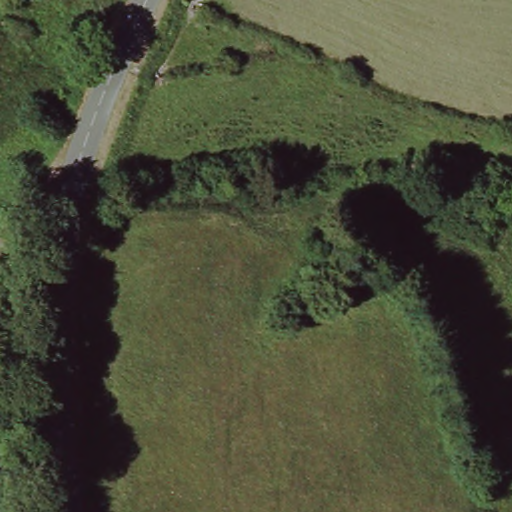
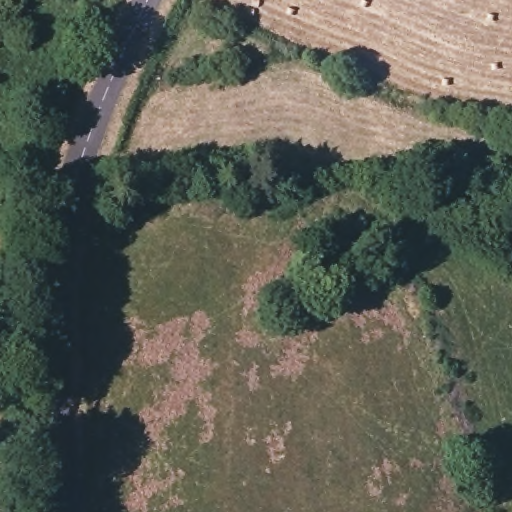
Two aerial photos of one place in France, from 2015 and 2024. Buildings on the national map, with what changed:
[]

